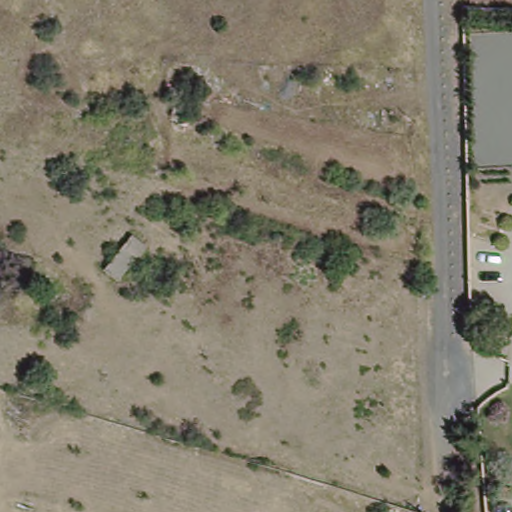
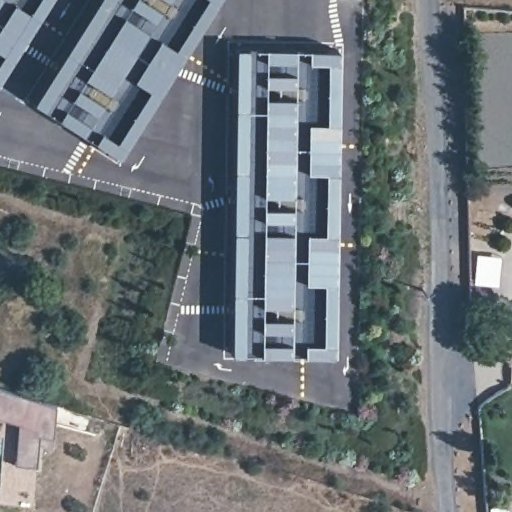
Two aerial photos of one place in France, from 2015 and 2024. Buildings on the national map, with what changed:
new [(0,78),(0,0),(49,0),(0,78)]
new [(118,156),(31,99),(94,0),(216,0),(118,156)]
new [(335,47),(333,353),(229,352),(235,46),(335,47)]
demolished [(138,264),(134,262),(118,282),(106,273),(133,241),(148,252),(138,264)]
new [(51,444),(36,443),(35,465),(13,462),(16,422),(0,416),(0,388),(54,403),(51,444)]

